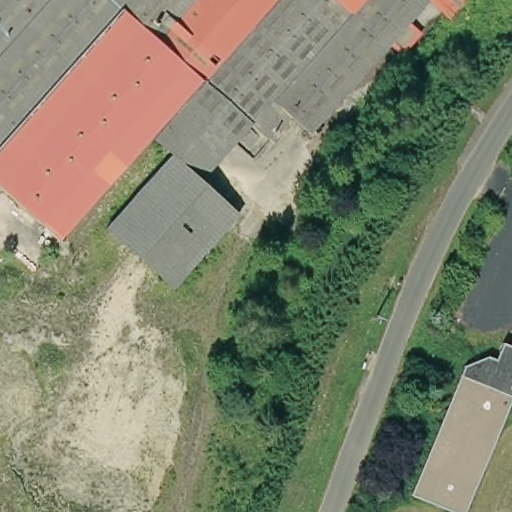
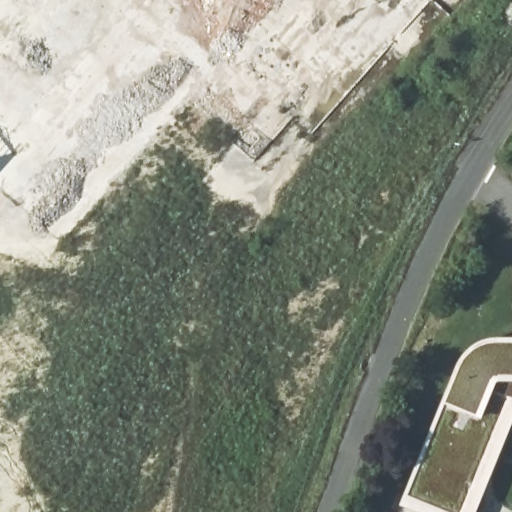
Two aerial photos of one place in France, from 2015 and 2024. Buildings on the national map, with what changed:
demolished [(424,5),(303,142),(284,124),(263,150),(245,131),(197,184),(235,218),(166,294),(100,233),(164,159),(147,144),(58,247),(0,197),(0,0),(465,0),(445,25),(424,5)]
new [(512,23),(512,27),(511,26),(512,23)]
new [(481,349),(495,344),(512,344),(512,395),(465,377),(465,376),(473,356),(481,349)]
demolished [(453,370),(475,361),(486,365),(492,347),(512,355),(512,404),(505,402),(460,512),(440,512),(403,498),(453,370)]
new [(468,512),(463,512),(415,492),(465,377),(512,395),(512,412),(468,512)]

